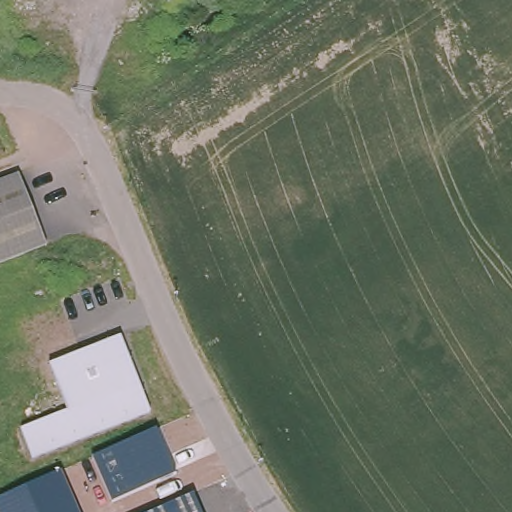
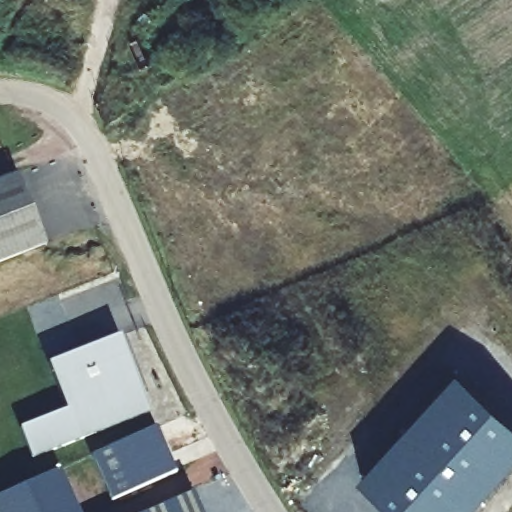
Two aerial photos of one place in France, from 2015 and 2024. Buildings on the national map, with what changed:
unchanged [(47,237),(0,256),(0,174),(19,167),(47,237)]
unchanged [(121,337),(150,416),(34,459),(23,429),(68,411),(51,366),(121,337)]
new [(512,417),(512,469),(473,512),(400,512),(363,480),(461,372),(512,417)]
unchanged [(159,428),(178,474),(112,502),(93,457),(159,428)]
unchanged [(81,512),(0,512),(0,498),(63,470),(81,512)]
unchanged [(194,492),(201,512),(149,512),(194,492)]

